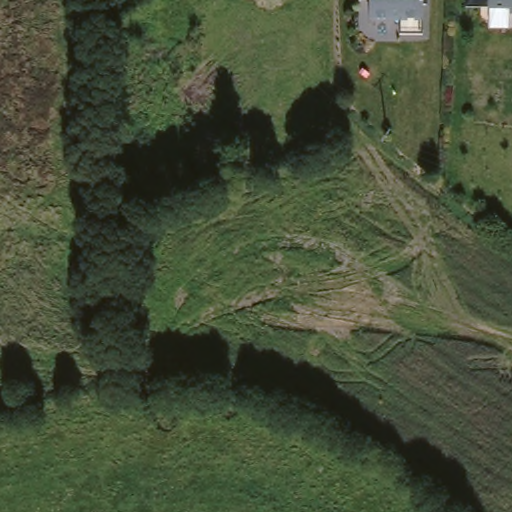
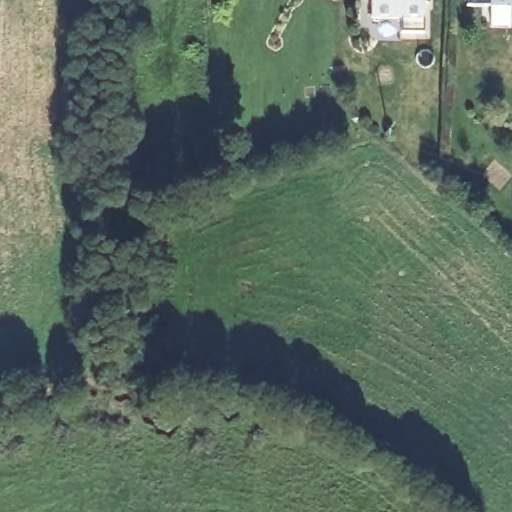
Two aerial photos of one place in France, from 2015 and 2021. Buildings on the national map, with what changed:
unchanged [(400,30),(398,19),(368,17),(367,0),(427,0),(426,30),(400,30)]
unchanged [(485,0),(512,0),(512,1),(485,0)]

